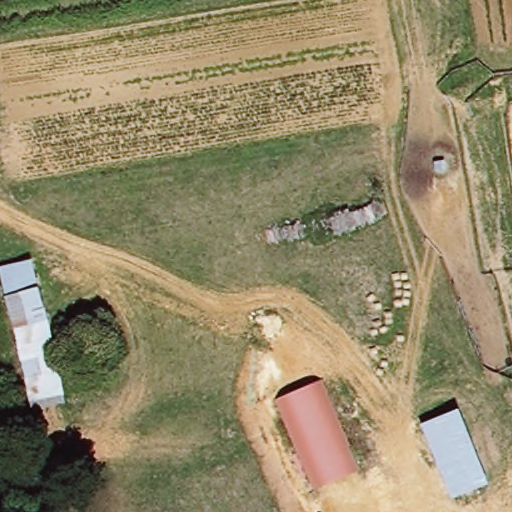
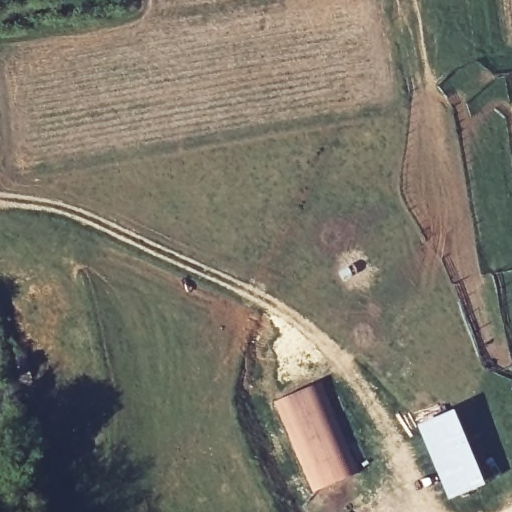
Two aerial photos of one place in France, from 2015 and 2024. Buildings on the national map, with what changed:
demolished [(28,418),(4,304),(0,285),(0,273),(31,268),(36,295),(63,411),(28,418)]
unchanged [(361,470),(313,490),(276,400),(324,380),(361,470)]
unchanged [(490,483),(451,500),(422,423),(458,407),(490,483)]

